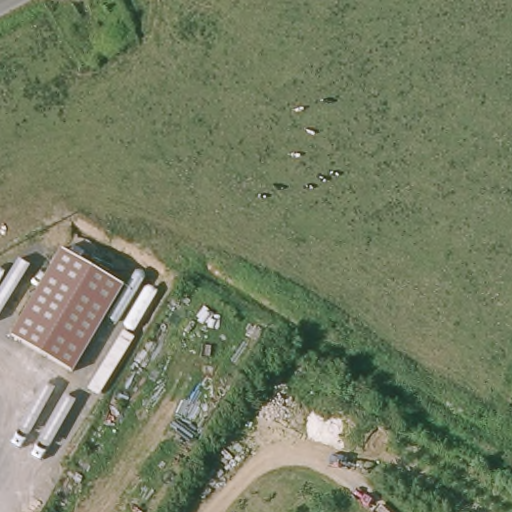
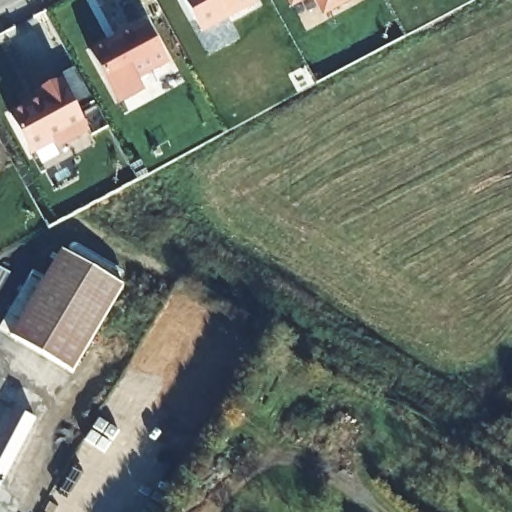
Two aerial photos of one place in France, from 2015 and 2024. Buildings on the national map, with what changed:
new [(202,33),(184,0),(255,0),(256,4),(202,33)]
new [(289,0),(305,0),(292,7),(289,0)]
new [(318,0),(348,0),(325,13),(318,0)]
new [(167,64),(139,79),(144,90),(119,103),(89,46),(105,39),(105,41),(146,21),(167,64)]
new [(88,133),(57,149),(55,144),(31,156),(5,108),(62,80),(88,133)]
unchanged [(63,250),(124,287),(71,374),(11,338),(63,250)]

